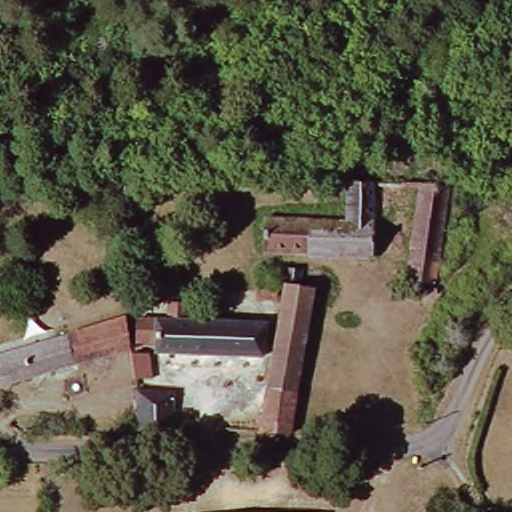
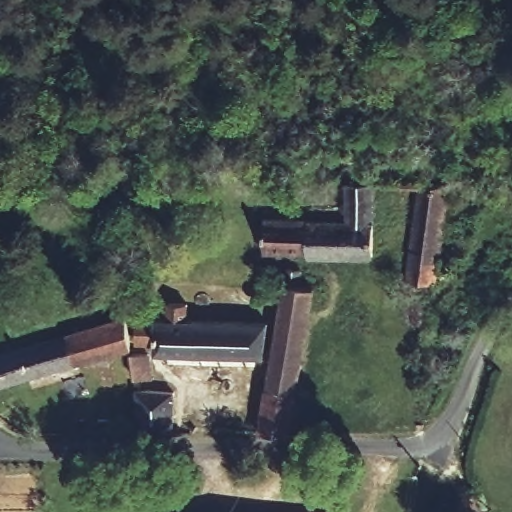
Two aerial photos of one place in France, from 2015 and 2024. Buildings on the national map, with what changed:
unchanged [(447,185),(435,280),(405,277),(416,185),(447,185)]
unchanged [(342,217),(342,189),(346,188),(371,188),(370,258),(259,258),(258,220),(342,217)]
unchanged [(273,287),(274,275),(301,278),(299,290),(311,291),(296,400),(264,395),(279,307),(253,307),(254,293),(253,286),(259,287),(273,287)]
unchanged [(159,342),(139,341),(140,318),(167,320),(168,304),(187,305),(187,319),(270,321),(264,354),(159,350),(159,342)]
unchanged [(136,349),(0,389),(0,354),(125,317),(136,349)]
unchanged [(136,386),(147,385),(147,380),(171,380),(171,434),(137,434),(136,386)]
unchanged [(264,395),(296,400),(289,440),(258,436),(264,395)]

